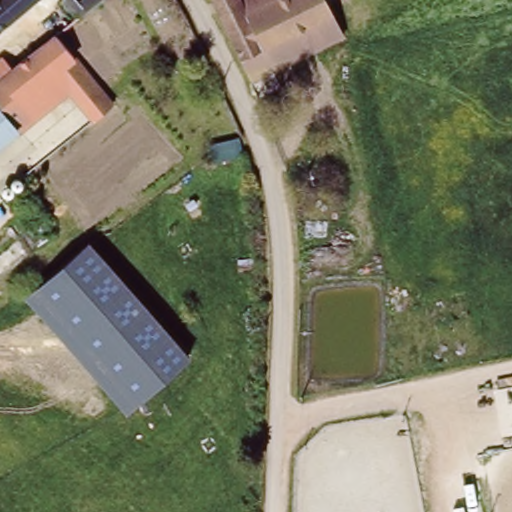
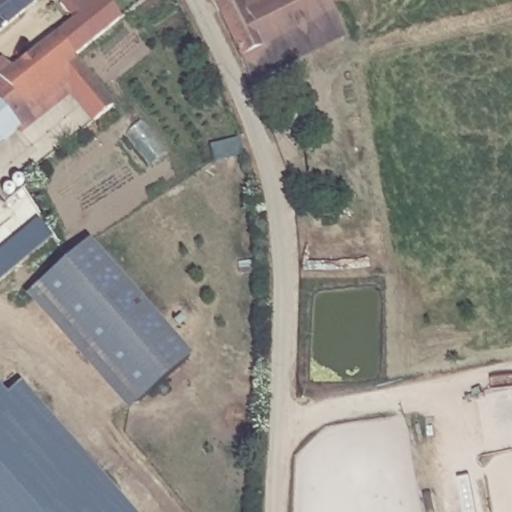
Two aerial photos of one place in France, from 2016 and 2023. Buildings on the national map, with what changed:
unchanged [(0,28),(0,0),(34,0),(0,28)]
unchanged [(80,5),(75,8),(68,0),(77,0),(77,1),(79,0),(96,0),(85,9),(80,5)]
unchanged [(263,53),(248,60),(241,64),(211,0),(238,0),(263,53)]
unchanged [(345,38),(250,83),(241,64),(248,60),(263,53),(238,0),(325,0),(345,38)]
unchanged [(91,122),(68,95),(0,148),(0,58),(1,56),(10,66),(53,32),(114,104),(91,122)]
unchanged [(192,358),(126,417),(22,297),(91,240),(192,358)]
new [(20,384),(134,512),(0,512),(0,388),(7,396),(20,384)]

